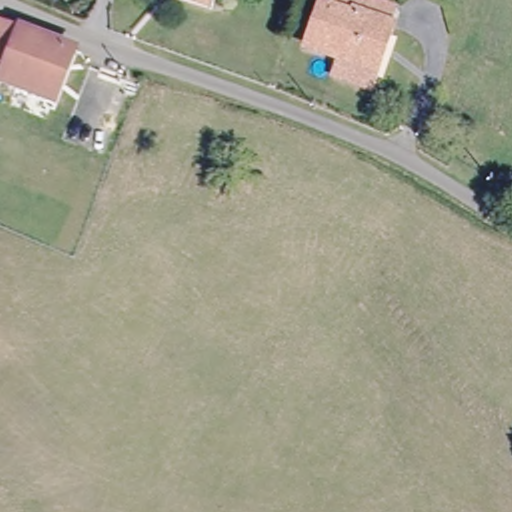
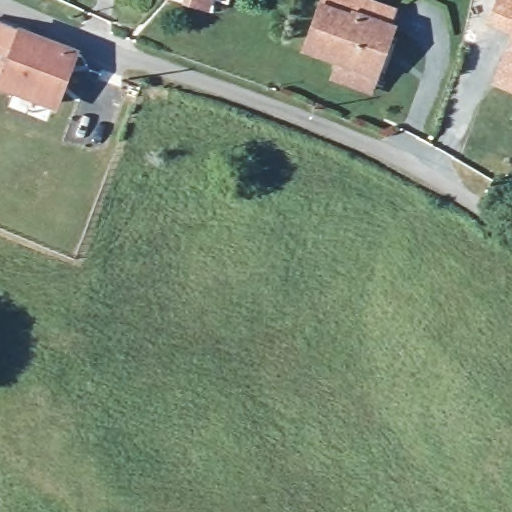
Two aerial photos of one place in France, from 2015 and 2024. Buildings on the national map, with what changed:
unchanged [(308,41),(322,4),(319,3),(320,0),(374,0),(390,7),(385,23),(371,66),(308,41)]
new [(491,82),(511,32),(486,22),(495,0),(512,0),(512,89),(491,82)]
unchanged [(0,83),(0,22),(20,30),(0,83)]
unchanged [(74,50),(53,104),(0,83),(20,30),(74,50)]

